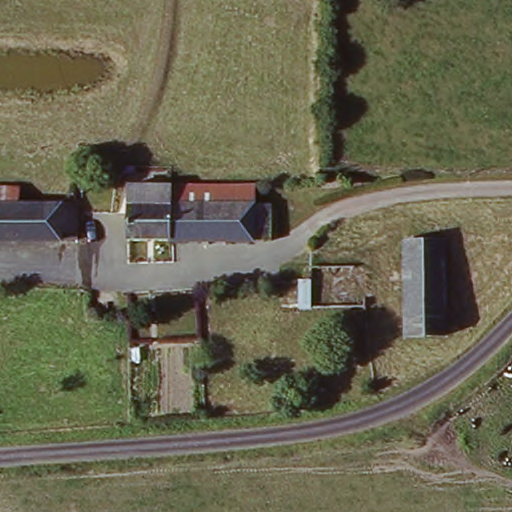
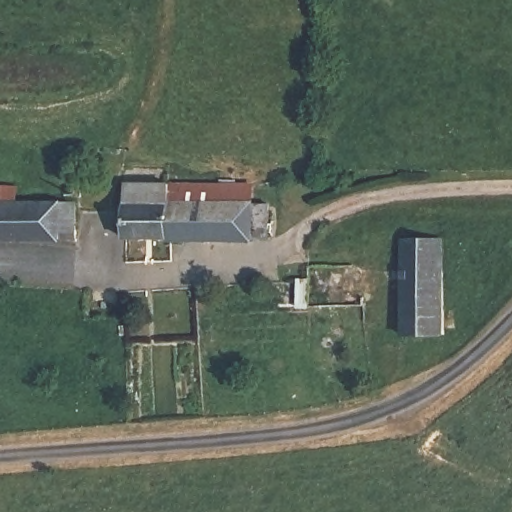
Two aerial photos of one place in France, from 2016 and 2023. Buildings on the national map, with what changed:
unchanged [(130,245),(130,213),(128,213),(128,189),(185,190),(185,209),(215,209),(217,244),(130,245)]
unchanged [(215,209),(185,209),(185,190),(187,190),(252,192),(254,210),(270,211),(270,244),(217,244),(215,209)]
unchanged [(0,208),(0,194),(18,194),(18,208),(0,208)]
unchanged [(18,208),(76,208),(76,244),(0,244),(0,208),(18,208)]
unchanged [(442,247),(442,340),(404,343),(402,247),(442,247)]
unchanged [(313,281),(313,295),(313,309),(301,309),(301,281),(313,281)]

